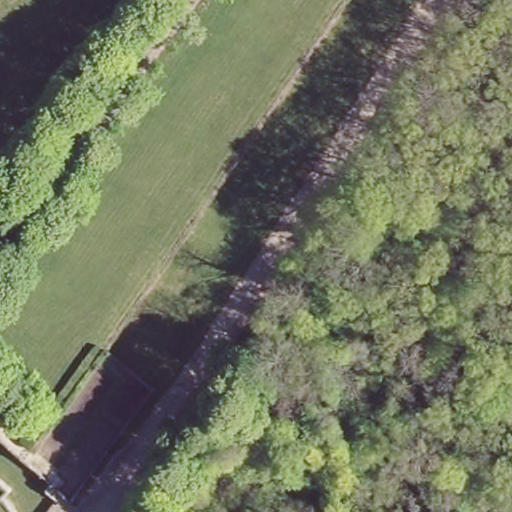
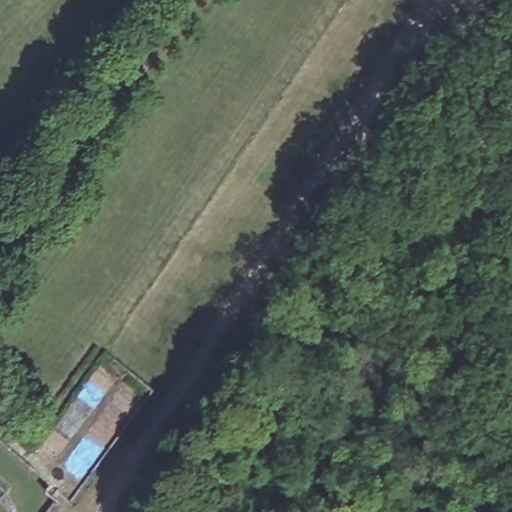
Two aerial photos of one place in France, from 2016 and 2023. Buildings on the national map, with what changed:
[]

